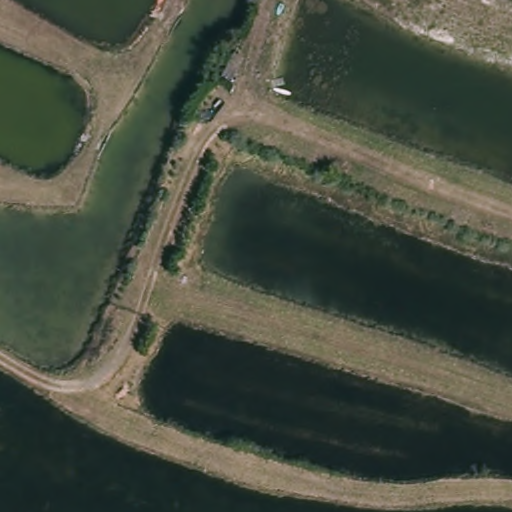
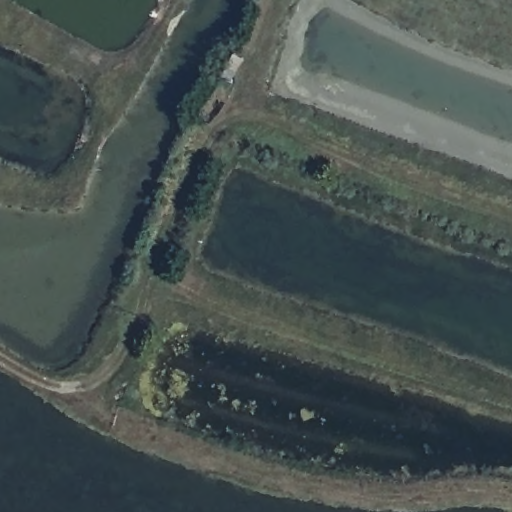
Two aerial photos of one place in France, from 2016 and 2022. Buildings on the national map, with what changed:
[]

